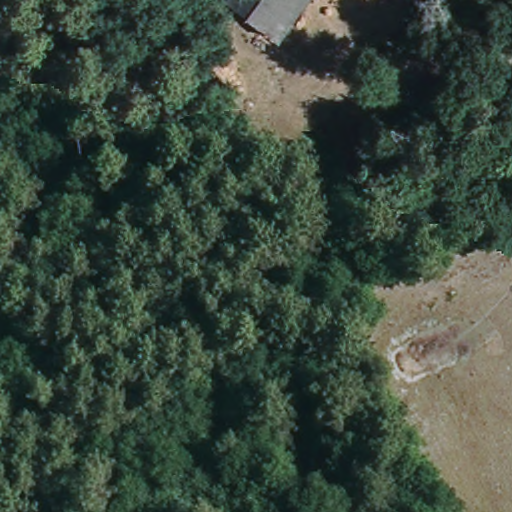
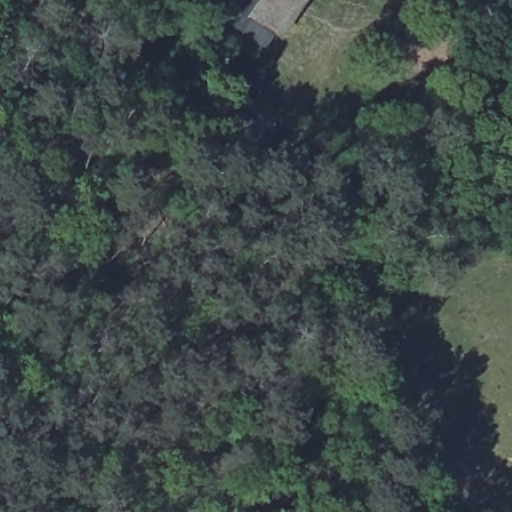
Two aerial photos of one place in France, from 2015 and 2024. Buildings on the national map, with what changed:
unchanged [(240,17),(253,0),(300,0),(271,41),(240,17)]

